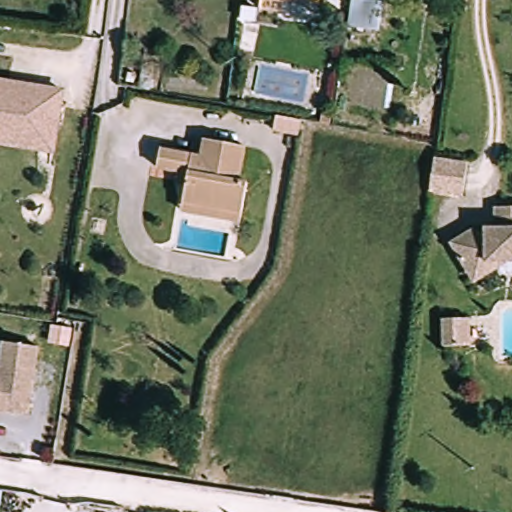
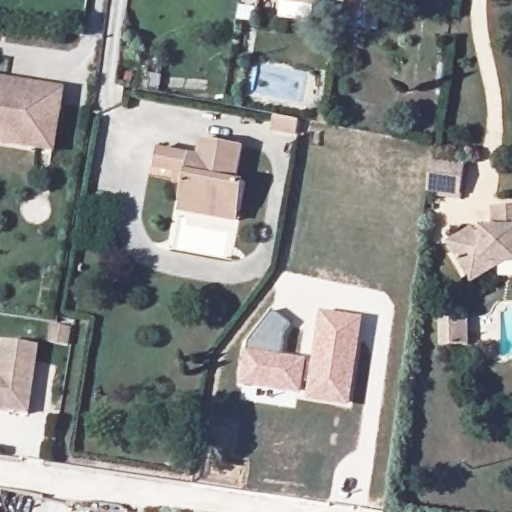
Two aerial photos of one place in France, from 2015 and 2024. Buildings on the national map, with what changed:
unchanged [(315,0),(314,10),(259,5),(259,0),(315,0)]
unchanged [(0,79),(69,89),(62,142),(61,149),(0,140),(0,79)]
unchanged [(180,215),(182,202),(183,190),(175,188),(176,175),(158,171),(160,152),(195,157),(199,152),(206,152),(209,139),(242,144),(238,177),(246,179),(242,211),(240,222),(180,215)]
unchanged [(424,170),(427,154),(459,158),(455,191),(422,187),(424,170)]
unchanged [(445,245),(469,233),(471,237),(479,232),(488,231),(489,217),(512,217),(512,270),(502,270),(466,287),(449,256),(445,245)]
new [(347,410),(306,403),(307,398),(241,387),(247,346),(273,315),(291,327),(284,338),(282,360),(312,363),(320,313),(361,320),(347,410)]
unchanged [(465,322),(463,347),(438,346),(440,321),(465,322)]
unchanged [(0,389),(0,347),(7,348),(0,389)]
unchanged [(38,353),(28,418),(0,414),(0,389),(7,348),(38,353)]

